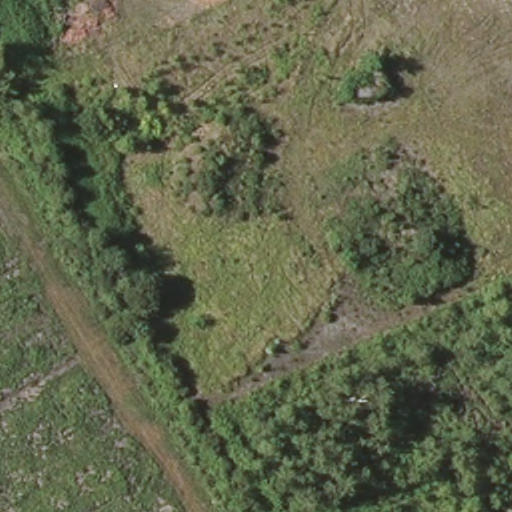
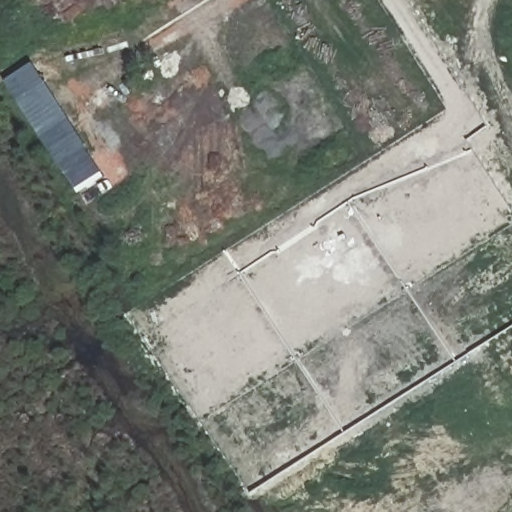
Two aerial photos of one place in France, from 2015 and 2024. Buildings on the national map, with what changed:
new [(103,175),(78,192),(6,81),(33,64),(103,175)]

